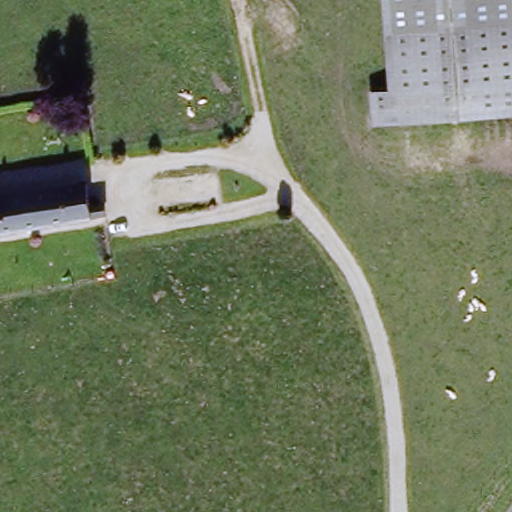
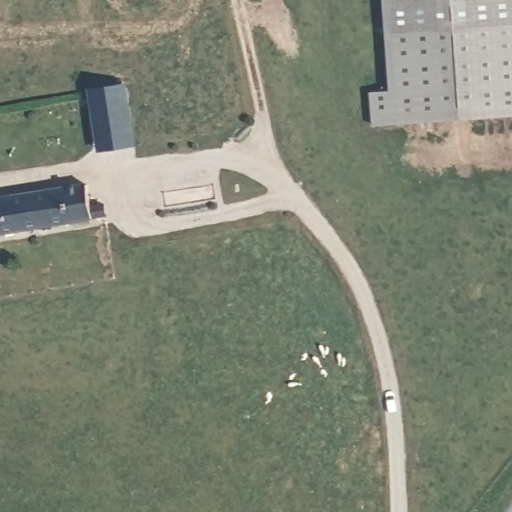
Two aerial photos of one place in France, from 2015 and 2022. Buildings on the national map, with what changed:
unchanged [(385,21),(383,0),(512,0),(512,17),(385,21)]
unchanged [(400,21),(512,17),(512,120),(371,128),(369,93),(389,91),(385,21),(400,21)]
new [(91,89),(125,84),(128,103),(135,142),(100,148),(94,109),(91,89)]
unchanged [(108,198),(111,215),(0,234),(0,201),(95,186),(108,198)]

